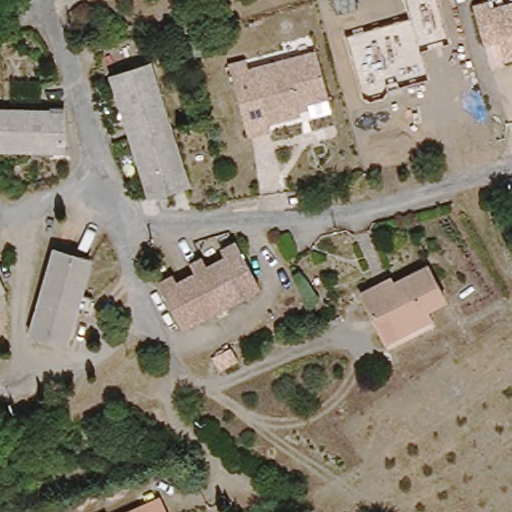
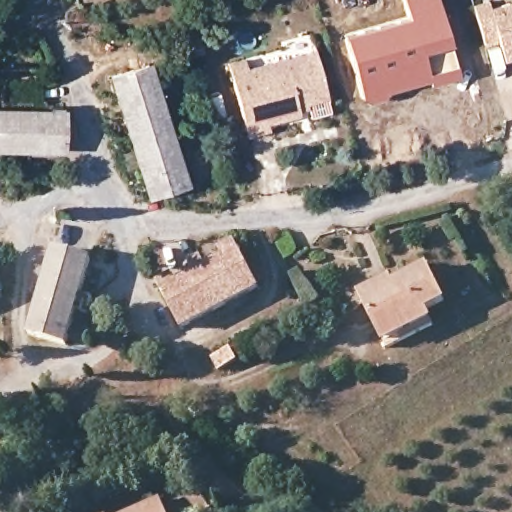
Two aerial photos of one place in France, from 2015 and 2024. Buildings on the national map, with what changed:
new [(409,15),(404,0),(437,0),(459,75),(429,84),(428,78),(388,89),(384,96),(369,101),(361,95),(345,33),(409,15)]
unchanged [(496,7),(512,2),(512,58),(508,59),(502,39),(487,43),(475,3),(484,0),(493,0),(496,7)]
unchanged [(249,60),(251,66),(317,49),(330,98),(310,102),(312,107),(270,120),(271,128),(251,132),(234,62),(249,60)]
unchanged [(187,182),(149,199),(105,73),(151,58),(187,182)]
unchanged [(63,155),(0,152),(0,104),(63,103),(63,155)]
unchanged [(261,279),(186,329),(158,290),(233,242),(261,279)]
unchanged [(54,254),(95,269),(63,347),(21,331),(54,254)]
unchanged [(429,319),(381,341),(356,284),(376,275),(380,280),(394,274),(424,260),(439,293),(421,302),(429,319)]
unchanged [(7,291),(0,295),(0,279),(7,291)]
unchanged [(162,512),(117,512),(153,495),(162,512)]
unchanged [(102,512),(96,512),(100,510),(102,512)]

